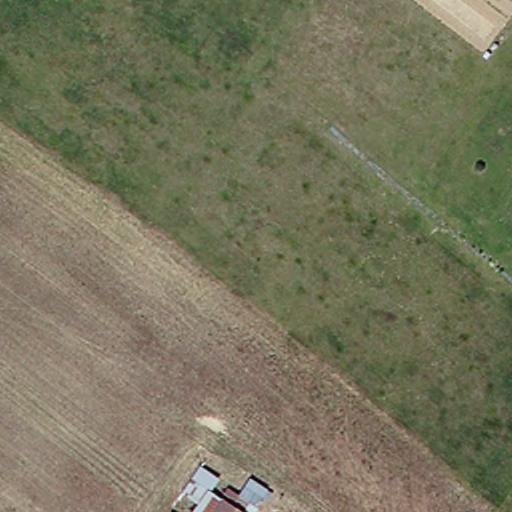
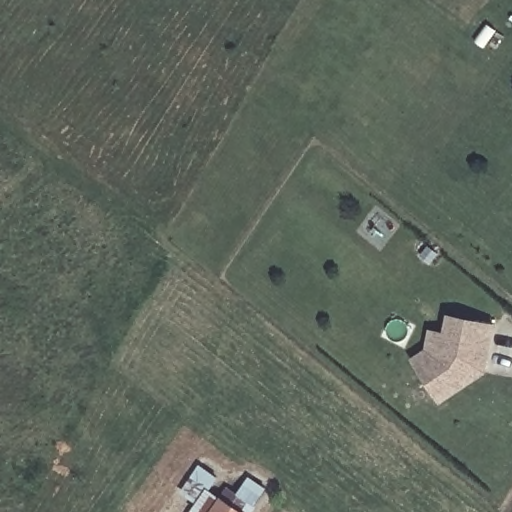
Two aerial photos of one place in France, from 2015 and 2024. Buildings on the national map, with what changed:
new [(435,361),(445,317),(490,327),(479,375),(433,403),(415,374),(435,361)]
unchanged [(187,509),(191,504),(174,492),(184,478),(195,464),(213,479),(205,490),(214,496),(220,488),(231,496),(234,493),(249,506),(244,512),(185,512),(187,509)]
unchanged [(162,511),(163,512),(161,512),(162,511)]

